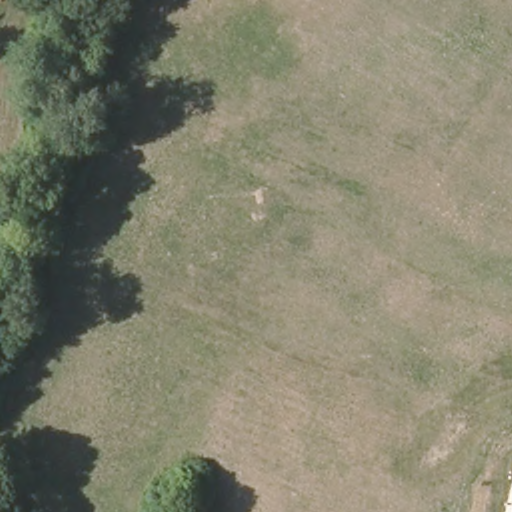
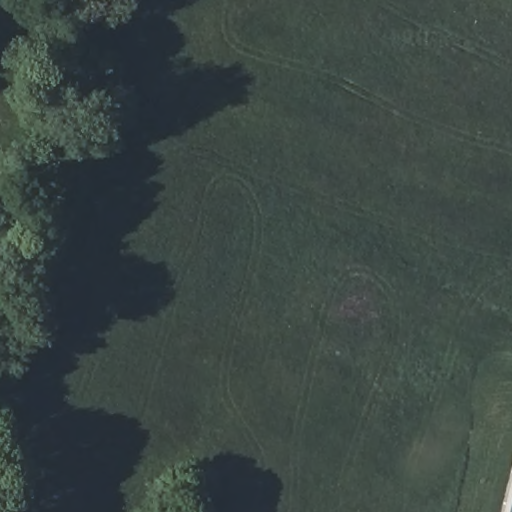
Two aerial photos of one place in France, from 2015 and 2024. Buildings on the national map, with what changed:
[]

